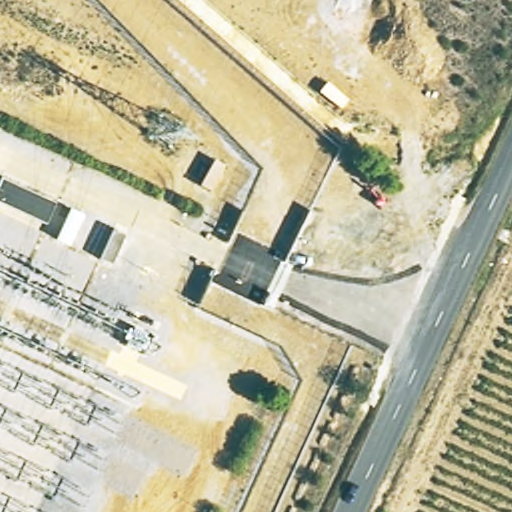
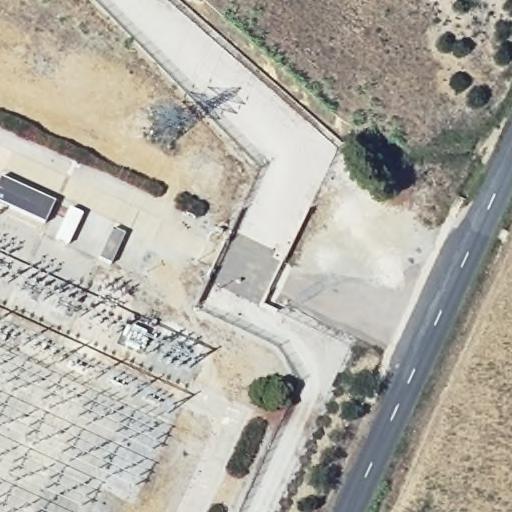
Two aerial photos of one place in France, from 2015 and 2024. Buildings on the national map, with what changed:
unchanged [(51,203),(41,220),(0,203),(0,180),(51,203)]

